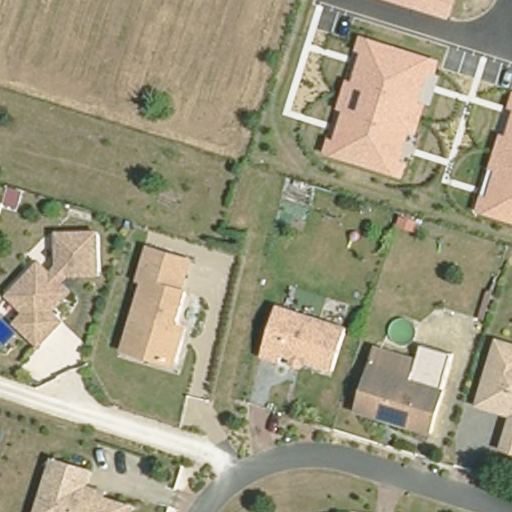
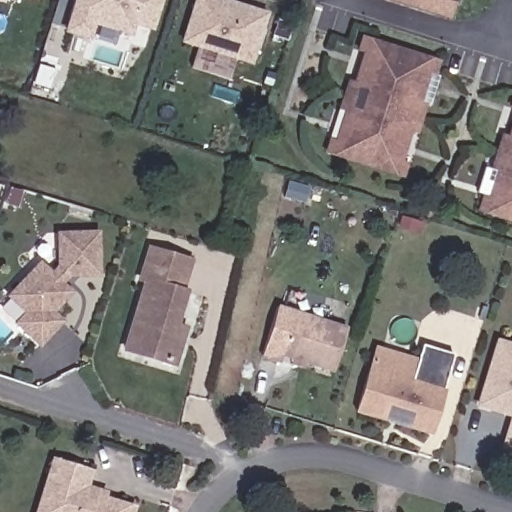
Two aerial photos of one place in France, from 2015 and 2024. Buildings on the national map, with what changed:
new [(41,0),(45,0),(44,1),(41,0)]
new [(136,20),(134,32),(95,24),(92,39),(70,35),(80,0),(163,0),(156,25),(136,20)]
new [(189,36),(200,0),(241,0),(271,9),(256,58),(189,36)]
unchanged [(393,0),(456,0),(450,18),(393,0)]
unchanged [(436,78),(430,76),(421,104),(426,106),(418,135),(412,132),(404,161),(410,164),(406,178),(325,154),(330,139),(336,140),(345,111),(339,109),(349,79),(354,81),(363,54),(357,51),(362,36),(441,63),(436,78)]
unchanged [(510,109),(512,103),(512,109),(510,109)]
unchanged [(479,213),(492,168),(502,134),(507,135),(512,117),(512,223),(479,213)]
unchanged [(70,276),(66,282),(75,290),(55,310),(67,320),(40,348),(13,324),(22,311),(4,294),(38,259),(50,269),(56,262),(55,229),(99,230),(98,275),(70,276)]
unchanged [(183,288),(187,290),(178,322),(189,326),(177,365),(123,351),(143,282),(136,279),(147,244),(191,256),(183,288)]
unchanged [(295,361),(297,354),(287,351),(285,357),(266,352),(280,302),(350,324),(337,367),(307,357),(304,364),(295,361)]
unchanged [(375,343),(415,356),(407,383),(367,370),(375,343)]
unchanged [(510,417),(502,414),(489,410),(477,406),(496,343),(512,348),(512,454),(500,450),(505,436),(510,417)]
unchanged [(354,413),(367,370),(407,383),(415,356),(418,346),(449,356),(438,392),(439,393),(427,434),(394,424),(385,422),(354,413)]
unchanged [(90,471),(85,486),(105,491),(104,497),(133,506),(132,512),(36,512),(47,474),(52,459),(90,471)]

